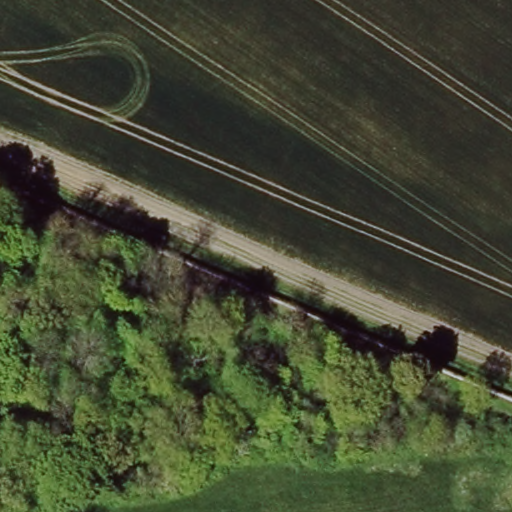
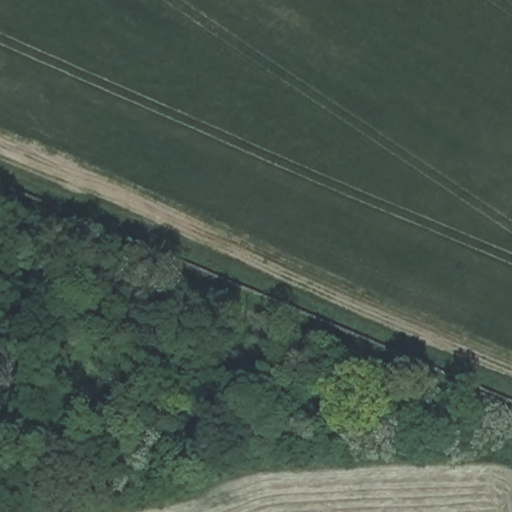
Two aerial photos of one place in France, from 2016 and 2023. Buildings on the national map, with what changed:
unchanged [(162,241),(156,254),(140,246),(150,233),(162,241)]

